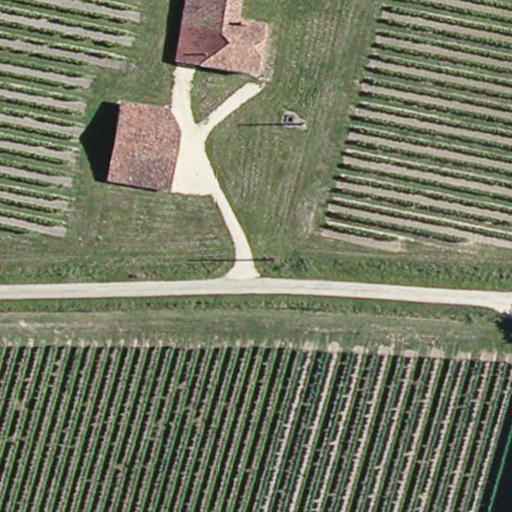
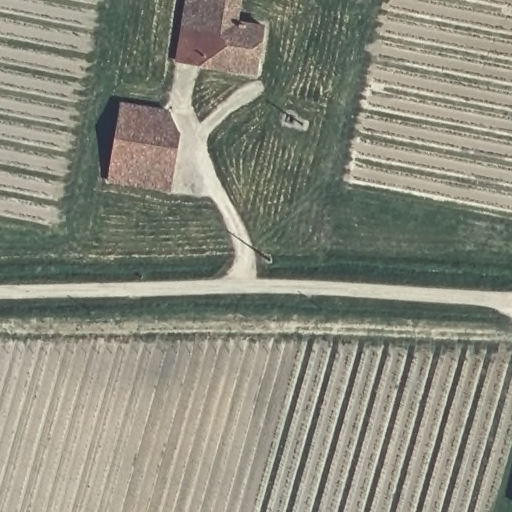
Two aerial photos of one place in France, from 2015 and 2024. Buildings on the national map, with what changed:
unchanged [(262,33),(252,80),(172,65),(182,0),(231,0),(229,25),(262,33)]
unchanged [(174,145),(162,192),(105,181),(121,109),(166,117),(174,145)]

